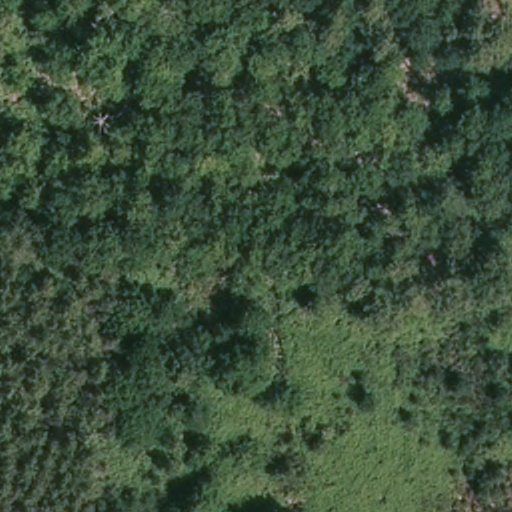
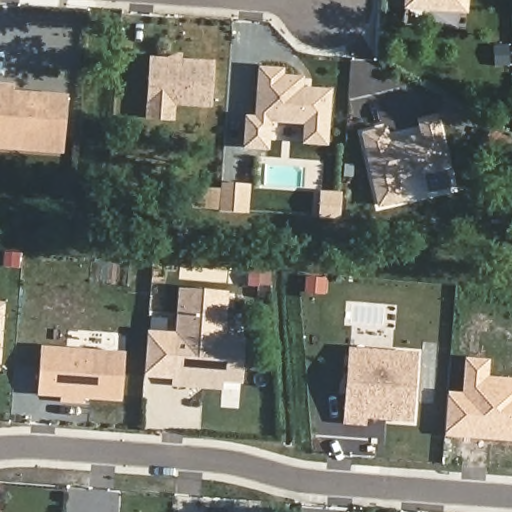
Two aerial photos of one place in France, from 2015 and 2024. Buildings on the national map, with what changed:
new [(467,14),(460,14),(458,30),(429,27),(430,12),(403,10),(404,0),(468,0),(467,14)]
new [(155,58),(216,63),(212,105),(177,102),(176,119),(150,117),(152,101),(155,58)]
new [(251,116),(261,117),(264,67),(286,69),(286,75),(306,77),(305,88),(334,90),(331,143),(308,141),(310,121),(273,119),(272,147),(249,145),(251,116)]
new [(17,94),(33,95),(44,95),(71,98),(67,137),(0,131),(0,85),(17,87),(17,94)]
new [(392,143),(397,141),(412,139),(426,135),(422,120),(438,116),(450,167),(400,179),(404,200),(382,205),(366,134),(388,128),(392,143)]
new [(67,153),(0,147),(0,131),(67,137),(67,153)]
new [(226,185),(252,187),(251,214),(224,211),(226,185)]
new [(144,376),(147,330),(175,332),(178,287),(230,291),(227,337),(180,334),(177,380),(144,376)]
new [(0,361),(0,307),(5,307),(0,361)]
new [(192,384),(177,383),(180,334),(247,339),(244,382),(225,381),(224,387),(192,384)]
new [(43,348),(127,356),(124,401),(40,395),(43,348)]
new [(418,353),(413,424),(367,420),(367,427),(343,425),(350,348),(418,353)]
new [(442,437),(446,391),(462,390),(465,356),(490,358),(488,375),(512,378),(512,443),(442,437)]

